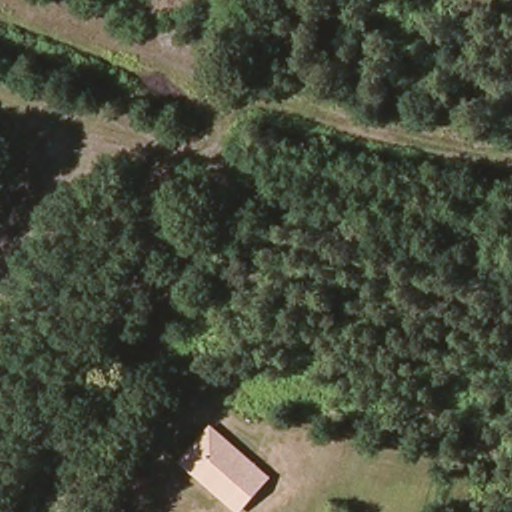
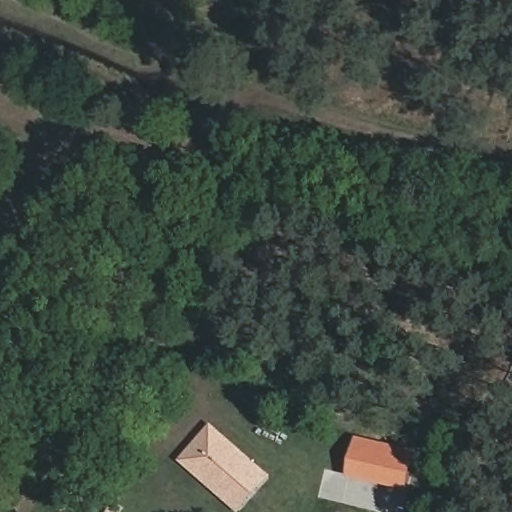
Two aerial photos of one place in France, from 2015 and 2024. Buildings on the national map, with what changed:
unchanged [(238,510),(180,460),(211,425),(268,475),(238,510)]
new [(348,477),(357,437),(419,452),(410,491),(348,477)]
unchanged [(120,512),(101,512),(107,500),(122,508),(120,512)]

